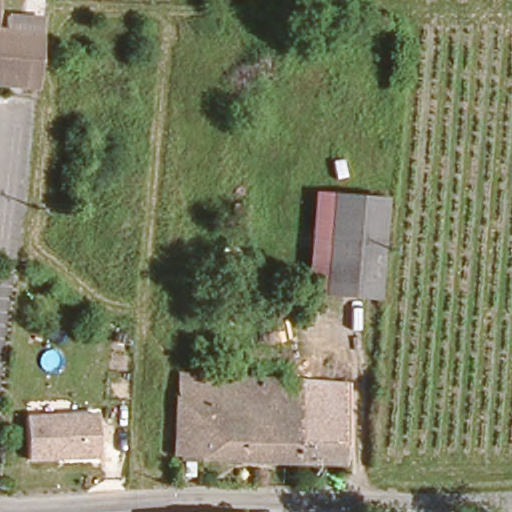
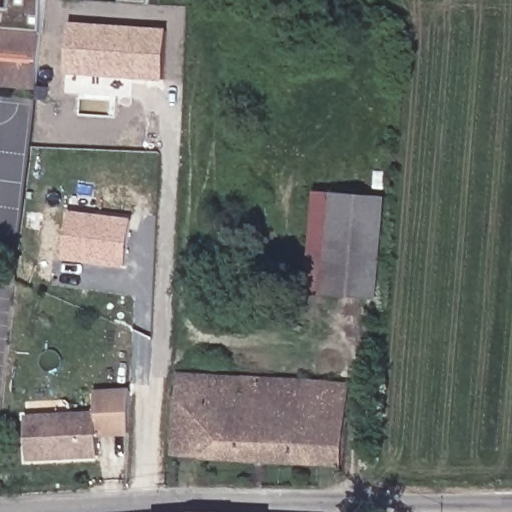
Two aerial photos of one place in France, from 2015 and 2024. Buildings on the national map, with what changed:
new [(42,30),(0,29),(0,8),(9,9),(10,0),(44,0),(42,30)]
new [(122,0),(151,0),(150,4),(122,2),(122,0)]
new [(66,75),(70,23),(168,29),(165,81),(66,75)]
unchanged [(42,30),(35,87),(0,85),(0,29),(42,30)]
unchanged [(314,191),(334,192),(326,292),(306,290),(314,191)]
unchanged [(384,197),(376,296),(326,292),(334,192),(384,197)]
new [(133,220),(127,262),(111,267),(64,261),(70,212),(133,220)]
unchanged [(339,459),(180,452),(181,411),(182,400),(183,380),(224,380),(347,384),(339,459)]
new [(95,389),(132,389),(129,435),(96,433),(95,427),(95,412),(95,389)]
unchanged [(95,412),(95,427),(96,433),(97,457),(29,460),(26,415),(95,412)]

